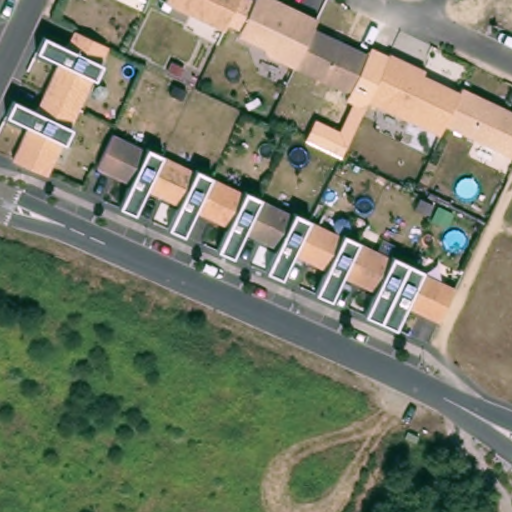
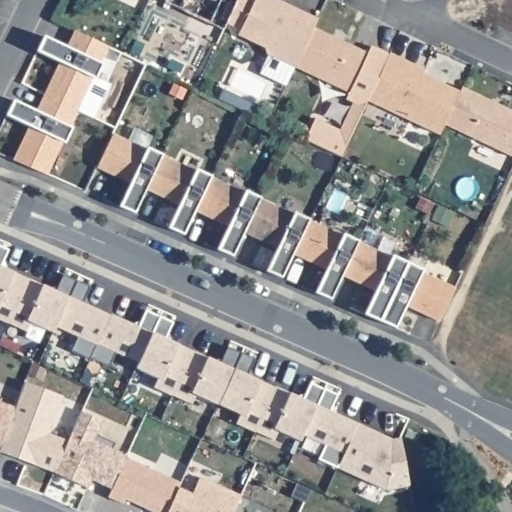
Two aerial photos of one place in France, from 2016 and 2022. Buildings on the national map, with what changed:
unchanged [(223,29),(165,1),(166,0),(237,0),(229,17),(223,29)]
unchanged [(313,27),(305,44),(304,45),(302,50),(294,66),(267,54),(264,47),(237,35),(254,0),(279,0),(317,18),(313,27)]
unchanged [(313,27),(368,54),(350,92),(294,66),(302,50),(304,45),(305,44),(313,27)]
unchanged [(88,37),(107,46),(99,62),(101,64),(94,80),(92,78),(77,110),(69,126),(71,127),(64,142),(62,141),(46,175),(42,172),(12,160),(29,125),(6,115),(13,99),(36,110),(43,94),(59,61),(36,50),(43,35),(66,46),(74,30),(88,37)]
unchanged [(367,100),(389,52),(404,60),(424,69),(422,74),(459,91),(453,105),(444,124),(439,134),(367,100)]
unchanged [(453,105),(459,91),(461,86),(512,111),(512,156),(444,124),(453,105)]
unchanged [(145,149),(147,146),(161,154),(161,155),(158,160),(149,179),(145,188),(133,212),(118,206),(129,181),(96,166),(99,160),(112,133),(145,149)]
unchanged [(194,170),(196,168),(210,175),(210,176),(205,186),(194,210),(182,234),(167,227),(178,205),(145,188),(149,179),(158,160),(161,155),(194,170)]
unchanged [(243,192),(245,190),(260,197),(259,198),(253,210),(243,231),(232,256),(216,249),(227,225),(194,210),(205,186),(210,176),(243,192)]
unchanged [(292,214),(293,211),(309,219),(308,220),(292,253),(281,277),(265,270),(276,247),(243,231),(253,210),(259,198),(292,214)]
unchanged [(341,235),(343,233),(358,241),(357,241),(354,250),(342,275),(330,300),(314,292),(325,269),(292,253),(308,220),(341,235)]
unchanged [(379,321),(363,314),(375,290),(342,275),(354,250),(357,241),(358,241),(391,257),(392,255),(407,262),(379,321)]
new [(0,264),(28,276),(8,320),(7,321),(0,318),(0,244),(8,247),(0,264)]
unchanged [(423,270),(421,271),(454,287),(449,298),(439,321),(406,305),(395,327),(379,321),(407,262),(423,270)]
new [(28,276),(55,288),(63,272),(76,278),(55,325),(52,330),(30,320),(26,330),(8,320),(28,276)]
new [(76,278),(77,277),(90,283),(83,300),(110,313),(90,356),(89,358),(71,350),(77,335),(55,325),(76,278)]
new [(110,313),(110,311),(138,324),(145,307),(159,313),(138,360),(115,350),(108,365),(90,356),(110,313)]
new [(138,360),(159,313),(173,320),(165,336),(192,348),(172,393),(153,385),(157,376),(135,366),(138,360)]
new [(192,348),(193,348),(220,360),(227,344),(241,350),(217,402),(195,392),(191,401),(172,393),(192,348)]
new [(241,350),(255,355),(247,373),(274,385),(255,429),(254,430),(235,421),(240,412),(217,402),(241,350)]
new [(0,444),(15,405),(24,380),(64,395),(48,431),(67,439),(53,470),(34,462),(14,455),(0,450),(0,444)]
new [(274,385),(275,384),(302,396),(310,380),(324,385),(303,432),(300,438),(277,428),(273,437),(255,429),(274,385)]
new [(324,385),(337,391),(330,408),(357,420),(337,465),(318,457),(325,442),(303,432),(324,385)]
new [(0,444),(0,400),(15,405),(0,444)]
new [(67,439),(81,409),(101,418),(95,431),(115,440),(112,446),(127,453),(126,455),(112,486),(91,477),(87,485),(53,470),(67,439)]
new [(357,420),(376,429),(374,434),(384,438),(400,435),(409,482),(386,487),(337,465),(357,420)]
new [(112,486),(126,455),(180,480),(166,512),(159,512),(125,496),(123,501),(108,495),(112,486)]
new [(177,487),(192,493),(200,475),(240,495),(233,510),(232,512),(167,512),(177,487)]
new [(233,510),(237,512),(232,512),(233,510)]

